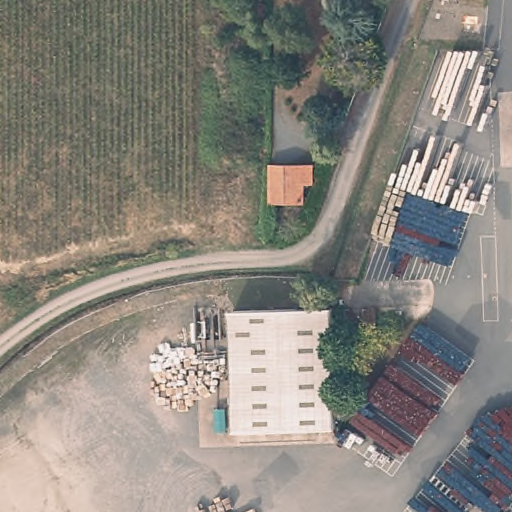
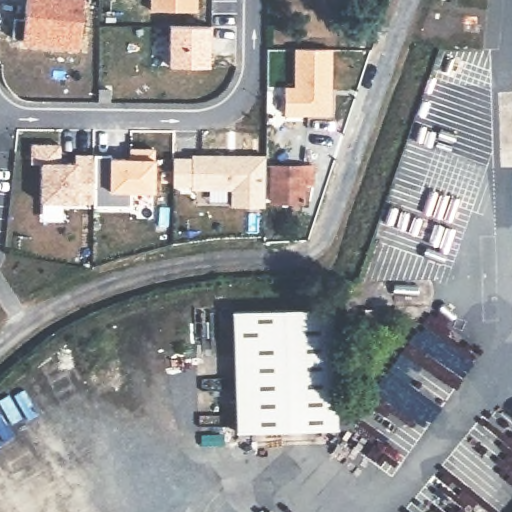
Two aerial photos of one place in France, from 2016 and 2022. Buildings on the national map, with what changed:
new [(75,47),(21,43),(24,0),(81,0),(75,47)]
new [(198,10),(149,9),(149,0),(198,0),(198,10)]
new [(209,24),(209,65),(167,64),(167,23),(209,24)]
new [(293,85),(293,47),(331,47),(330,115),(283,114),(283,85),(293,85)]
new [(74,160),(75,153),(92,153),(112,153),(111,156),(129,156),(128,146),(154,147),(152,156),(153,190),(131,189),(131,205),(93,205),(93,202),(76,203),(38,202),(39,162),(29,162),(30,142),(60,142),(59,160),(74,160)]
new [(264,153),(265,205),(229,205),(229,190),(190,189),(190,187),(172,186),(172,156),(190,156),(190,152),(264,153)]
unchanged [(311,162),(311,181),(304,181),(304,199),(273,199),(273,163),(311,162)]
unchanged [(331,306),(336,425),(239,428),(234,308),(331,306)]

